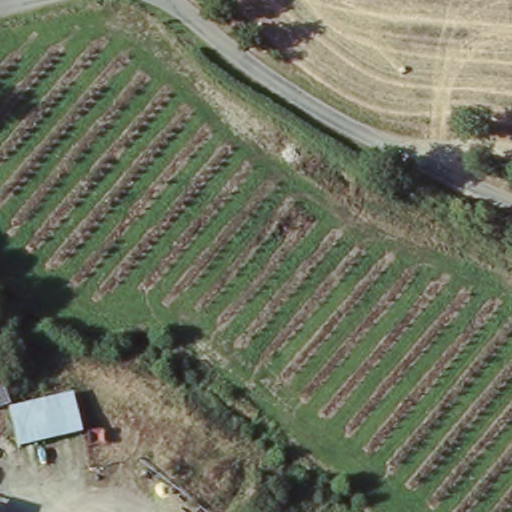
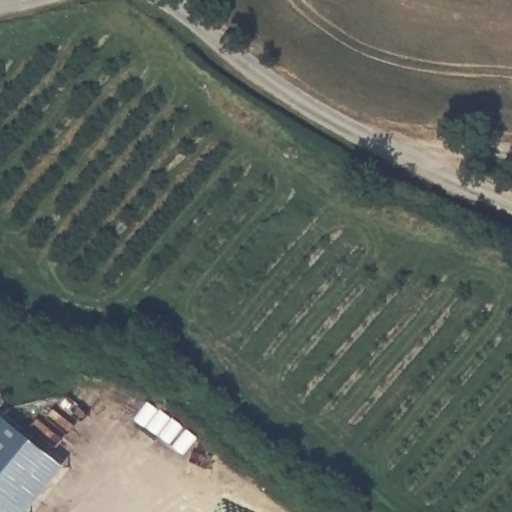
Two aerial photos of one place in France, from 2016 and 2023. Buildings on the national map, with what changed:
demolished [(9,410),(0,412),(0,383),(10,410),(9,410)]
demolished [(74,397),(82,433),(36,445),(26,406),(74,397)]
new [(67,465),(29,512),(0,512),(0,422),(6,415),(67,465)]

